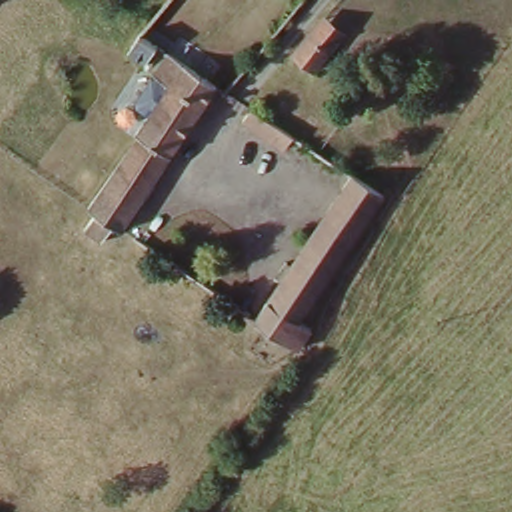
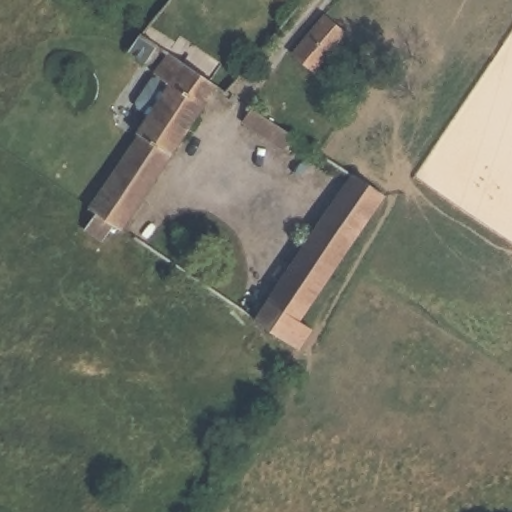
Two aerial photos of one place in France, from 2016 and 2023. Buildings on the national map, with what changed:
unchanged [(293,50),(310,29),(319,16),(342,35),(333,47),(316,70),(293,50)]
unchanged [(114,44),(128,22),(143,34),(149,40),(135,60),(114,44)]
unchanged [(117,231),(110,226),(99,243),(82,232),(93,215),(85,209),(141,127),(128,118),(142,96),(143,97),(160,74),(146,64),(156,45),(215,85),(117,231)]
unchanged [(280,161),(235,130),(246,116),(290,144),(315,161),(307,178),(280,161)]
unchanged [(353,172),(391,197),(301,311),(315,321),(293,345),(249,318),(353,172)]

